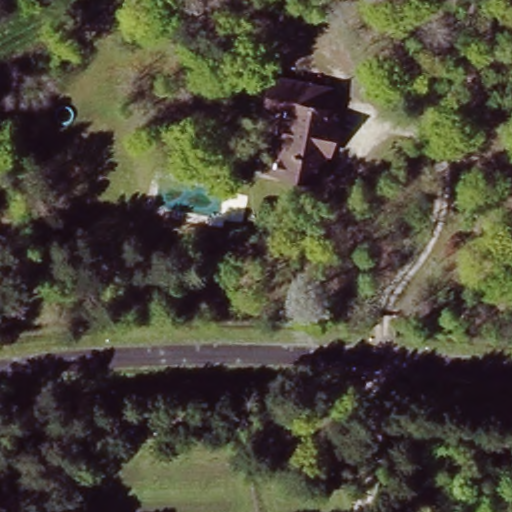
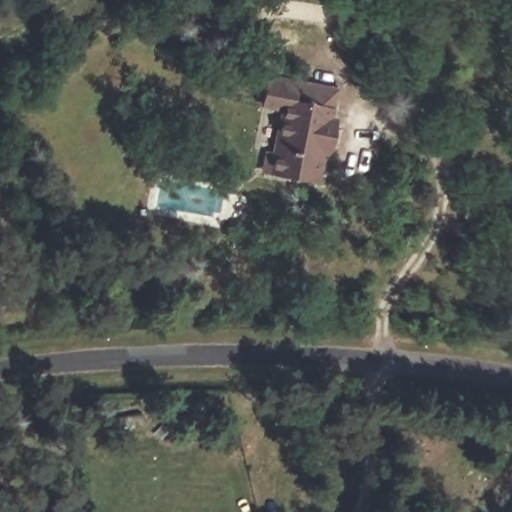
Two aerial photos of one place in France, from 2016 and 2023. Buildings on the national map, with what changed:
unchanged [(286,164),(290,119),(260,116),(263,85),(330,91),(322,168),(286,164)]

